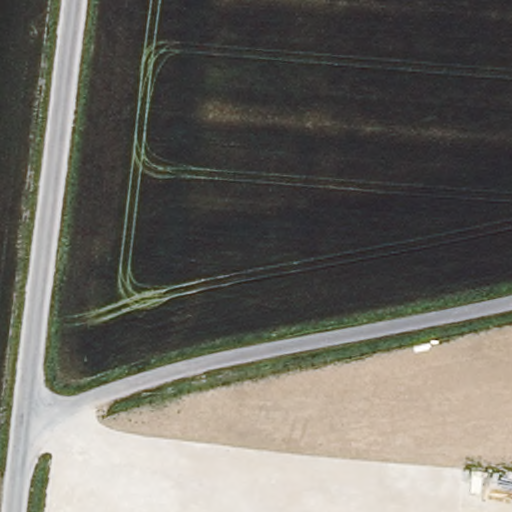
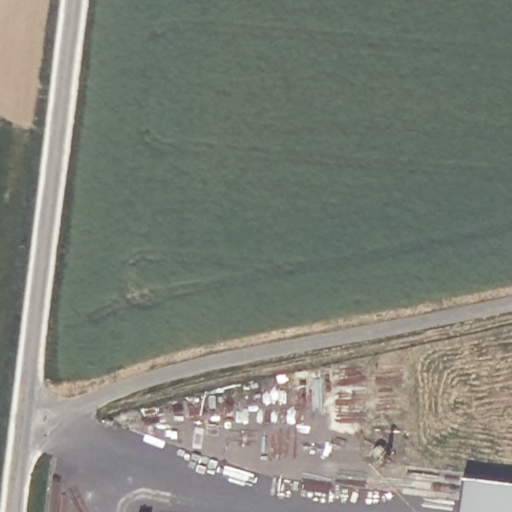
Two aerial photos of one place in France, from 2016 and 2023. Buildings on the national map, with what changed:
new [(465,472),(512,477),(512,512),(461,512),(465,472)]

